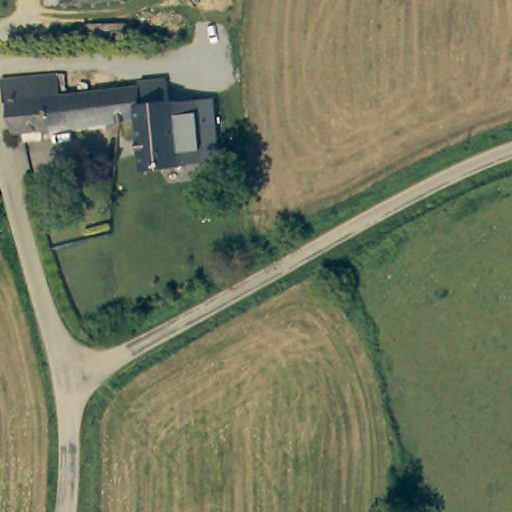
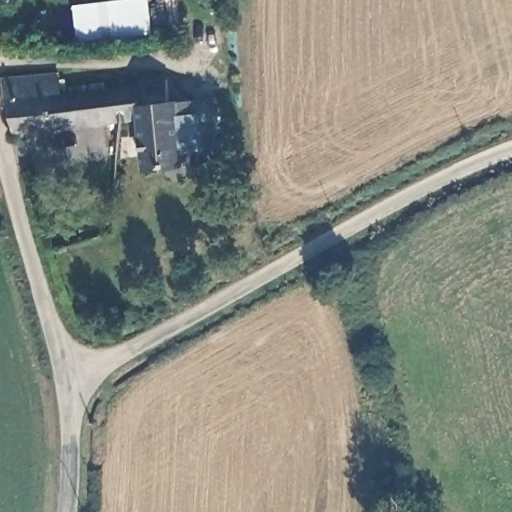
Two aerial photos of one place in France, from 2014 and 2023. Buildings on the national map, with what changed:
new [(80,43),(76,5),(120,0),(151,0),(155,33),(80,43)]
unchanged [(17,131),(3,76),(64,71),(67,91),(132,87),(149,86),(149,93),(174,91),(175,104),(185,103),(185,105),(188,166),(189,166),(148,170),(145,117),(17,131)]
unchanged [(219,103),(222,164),(188,166),(185,105),(219,103)]

